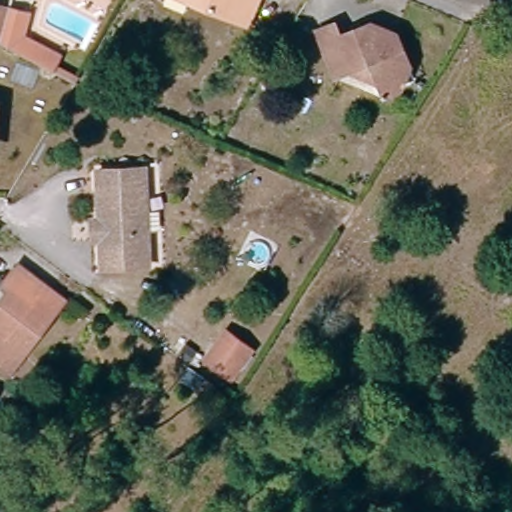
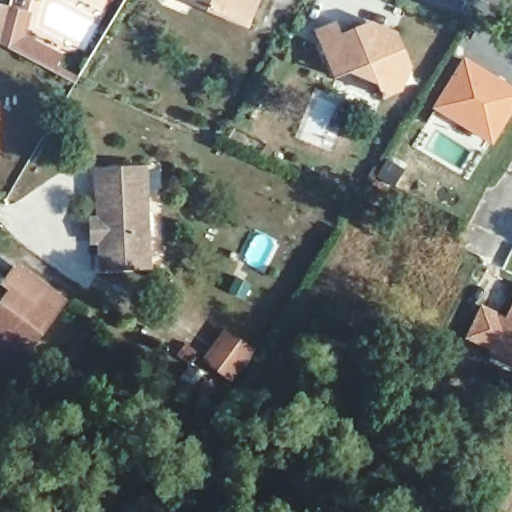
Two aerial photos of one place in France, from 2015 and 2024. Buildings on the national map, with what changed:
unchanged [(253,0),(252,3),(244,22),(236,19),(190,0),(253,0)]
unchanged [(0,5),(23,10),(29,12),(21,27),(11,45),(0,40),(0,5)]
unchanged [(400,86),(384,92),(376,75),(352,65),(334,74),(315,26),(332,20),(337,30),(366,20),(399,35),(409,60),(417,79),(400,86)]
unchanged [(74,54),(61,70),(11,45),(21,27),(74,54)]
new [(464,55),(512,84),(512,112),(492,145),(431,107),(464,55)]
new [(389,155),(407,165),(394,187),(375,177),(389,155)]
unchanged [(91,217),(99,216),(98,170),(146,169),(148,207),(149,235),(151,267),(101,267),(100,238),(91,237),(91,217)]
unchanged [(0,304),(1,302),(13,287),(5,279),(17,263),(62,301),(25,347),(8,368),(0,362),(0,304)]
new [(481,303),(506,315),(512,302),(512,369),(503,365),(463,339),(481,303)]
unchanged [(249,349),(227,378),(203,360),(225,330),(249,349)]
unchanged [(194,406),(169,386),(179,373),(205,394),(194,406)]

